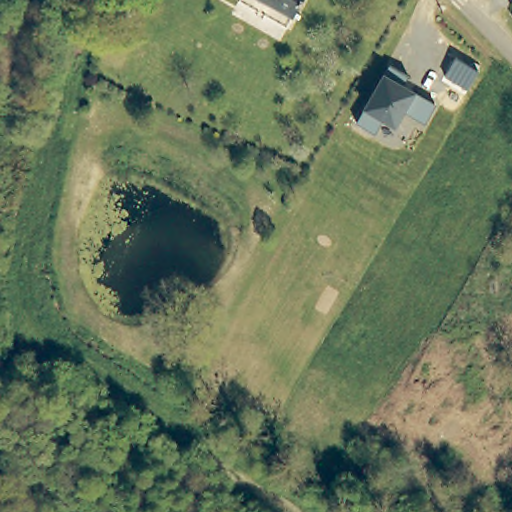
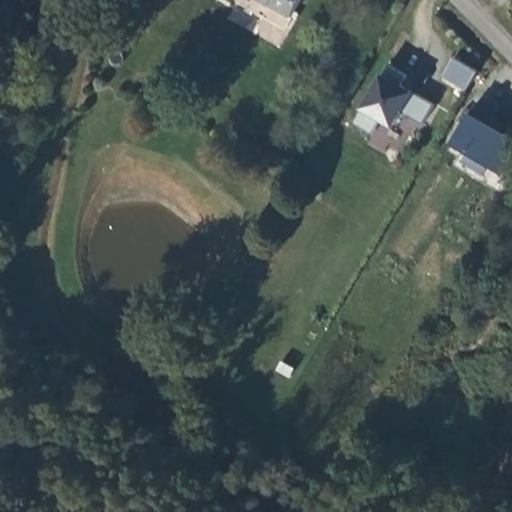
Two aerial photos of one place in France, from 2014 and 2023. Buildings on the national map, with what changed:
unchanged [(285,26),(240,0),(300,0),(285,26)]
unchanged [(354,122),(382,74),(388,64),(407,76),(403,84),(415,91),(435,104),(425,123),(402,112),(395,128),(382,120),(374,133),(354,122)]
new [(503,173),(487,163),(485,167),(466,156),(468,152),(451,143),(471,108),(508,130),(506,128),(508,123),(512,125),(512,161),(511,160),(503,173)]
new [(468,152),(466,156),(485,167),(487,163),(488,164),(483,172),(462,160),(466,151),(468,152)]

